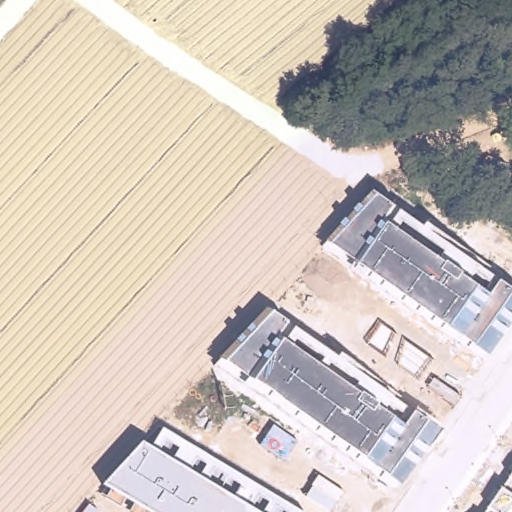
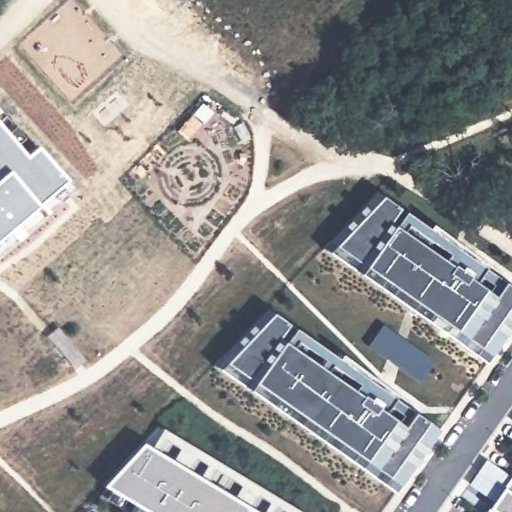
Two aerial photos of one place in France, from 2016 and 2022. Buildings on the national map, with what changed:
new [(76,189),(0,253),(0,124),(25,153),(36,144),(66,179),(76,189)]
unchanged [(483,266),(512,287),(512,326),(486,362),(474,353),(462,344),(450,335),(358,271),(328,250),(382,195),(403,211),(483,266)]
unchanged [(273,311),(294,327),(393,397),(414,411),(428,421),(440,429),(395,492),(383,483),(371,474),(359,466),(248,388),(218,368),(273,311)]
unchanged [(420,380),(371,345),(384,325),(434,360),(420,380)]
unchanged [(152,447),(164,428),(304,512),(151,512),(104,484),(142,441),(152,447)]
unchanged [(495,498),(472,482),(476,470),(486,457),(512,476),(512,512),(498,512),(490,506),(495,498)]
unchanged [(498,512),(486,512),(490,506),(498,512)]

